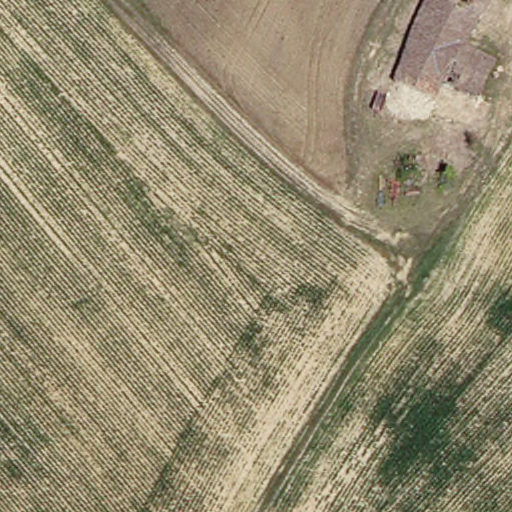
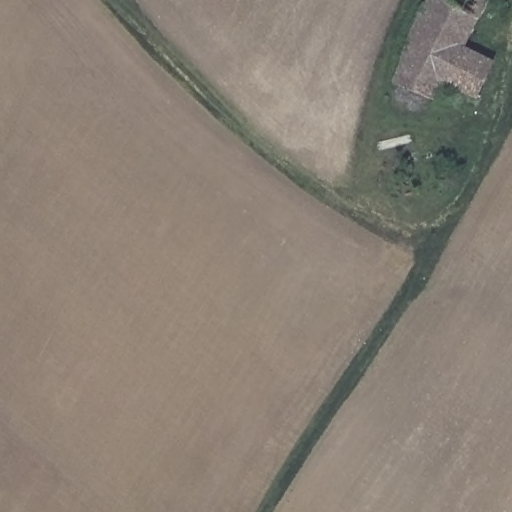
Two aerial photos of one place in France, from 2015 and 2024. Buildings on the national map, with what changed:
unchanged [(430,31),(442,0),(444,0),(465,7),(495,21),(479,49),(430,31)]
unchanged [(468,0),(506,0),(495,21),(465,7),(468,0)]
unchanged [(485,115),(407,92),(430,31),(479,49),(463,88),(491,98),(485,115)]
unchanged [(491,98),(463,88),(479,49),(508,60),(491,98)]

